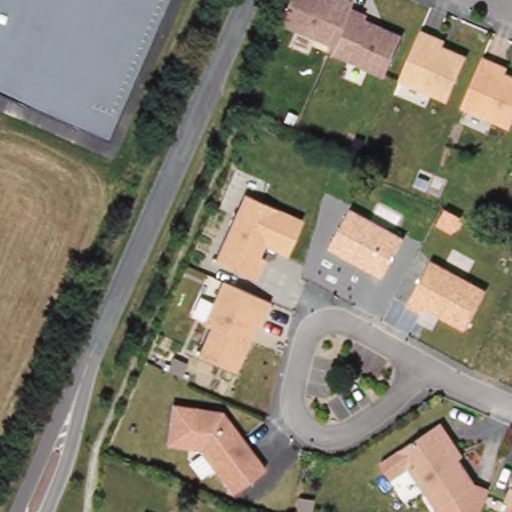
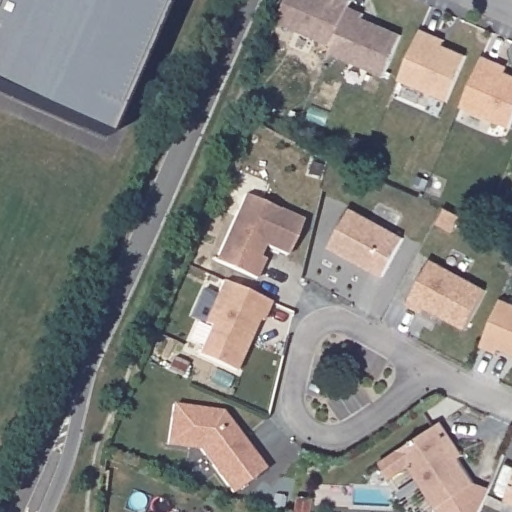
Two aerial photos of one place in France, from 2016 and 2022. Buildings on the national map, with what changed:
unchanged [(104,135),(0,90),(0,0),(162,0),(104,135)]
unchanged [(349,7),(337,36),(332,46),(277,22),(285,3),(287,0),(352,0),(349,7)]
unchanged [(349,7),(365,14),(362,19),(402,35),(384,77),(329,53),(332,46),(337,36),(349,7)]
unchanged [(438,37),(435,42),(467,56),(447,101),(399,81),(408,60),(421,30),(438,37)]
unchanged [(502,70),(512,74),(512,127),(466,107),(488,57),(505,64),(502,70)]
unchanged [(285,256),(263,246),(259,256),(264,259),(256,280),(215,262),(243,195),(302,219),(285,256)]
unchanged [(327,251),(351,208),(403,237),(383,278),(327,251)]
unchanged [(426,307),(425,308),(422,312),(407,304),(432,260),(486,290),(465,328),(426,307)]
unchanged [(271,305),(239,375),(199,358),(211,331),(202,328),(222,284),(271,305)]
new [(512,304),(512,354),(499,348),(497,353),(481,347),(501,300),(512,304)]
unchanged [(223,413),(263,471),(231,495),(201,452),(167,449),(173,406),(223,413)]
unchanged [(460,461),(477,487),(490,492),(478,512),(436,512),(401,457),(441,427),(464,459),(460,461)]
unchanged [(512,489),(512,507),(505,503),(512,489)]

